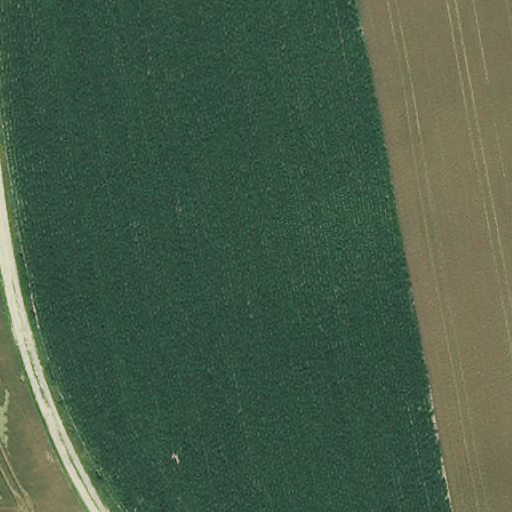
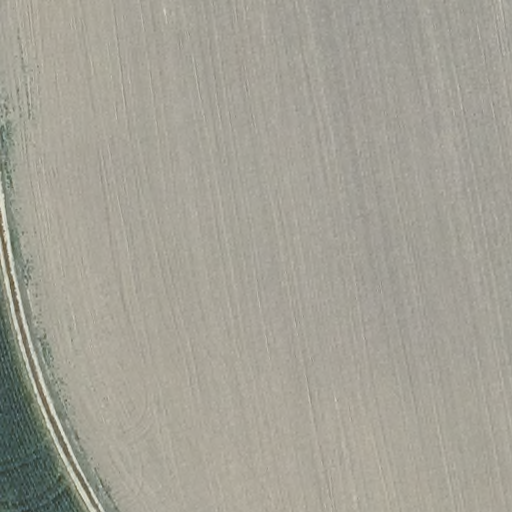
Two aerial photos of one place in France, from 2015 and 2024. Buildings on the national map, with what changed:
[]

